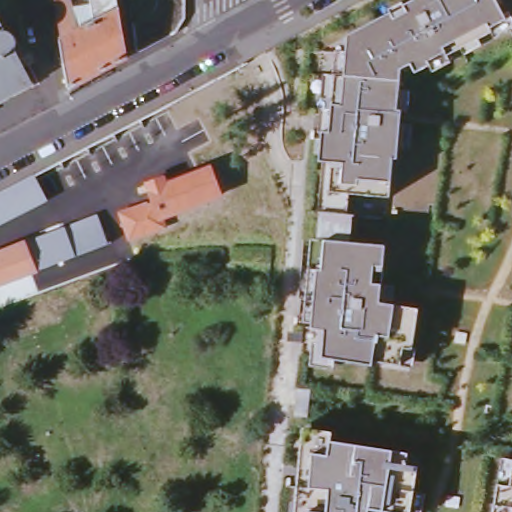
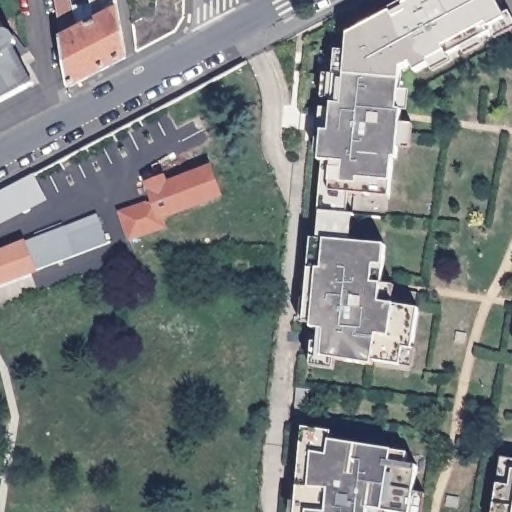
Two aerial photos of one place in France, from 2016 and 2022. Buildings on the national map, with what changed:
unchanged [(75,0),(119,0),(119,1),(127,57),(68,87),(54,0),(72,0),(72,1),(75,0)]
unchanged [(399,364),(369,361),(332,358),(331,372),(311,366),(312,354),(317,356),(319,327),(310,326),(316,267),(309,266),(312,237),(319,237),(322,215),(324,189),(336,186),(339,157),(326,156),(329,126),(336,127),(341,70),(351,71),(352,31),(396,8),(399,15),(412,7),(408,2),(411,0),(503,0),(511,16),(495,24),(497,27),(482,36),(480,32),(464,41),(466,44),(452,52),(450,49),(432,57),(435,61),(420,69),(416,60),(408,64),(405,105),(409,105),(404,154),(400,153),(397,192),(356,188),(349,187),(346,217),(355,218),(351,241),(382,244),(377,301),(396,303),(416,306),(410,346),(402,345),(399,364)]
unchanged [(0,97),(0,25),(29,82),(0,97)]
unchanged [(130,166),(16,223),(19,228),(0,237),(0,192),(112,131),(130,166)]
unchanged [(150,198),(144,182),(164,176),(166,182),(212,167),(224,199),(159,222),(162,229),(130,239),(120,209),(150,198)]
unchanged [(107,245),(0,281),(0,251),(100,217),(107,245)]
unchanged [(415,464),(407,511),(377,507),(367,506),(366,512),(294,512),(302,431),(317,433),(318,428),(331,431),(331,438),(394,447),(407,450),(405,461),(415,464)]
unchanged [(492,512),(497,479),(501,455),(512,457),(512,512),(492,512)]

